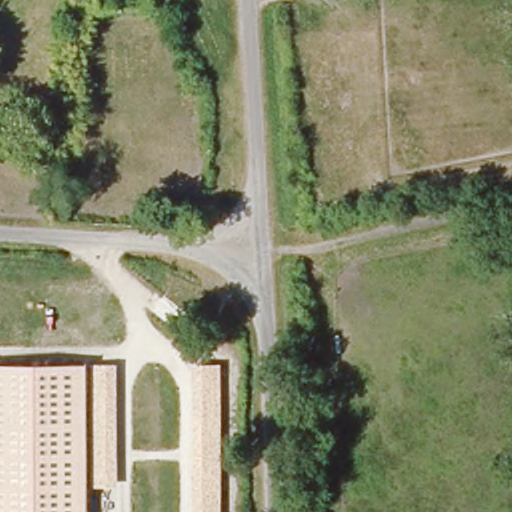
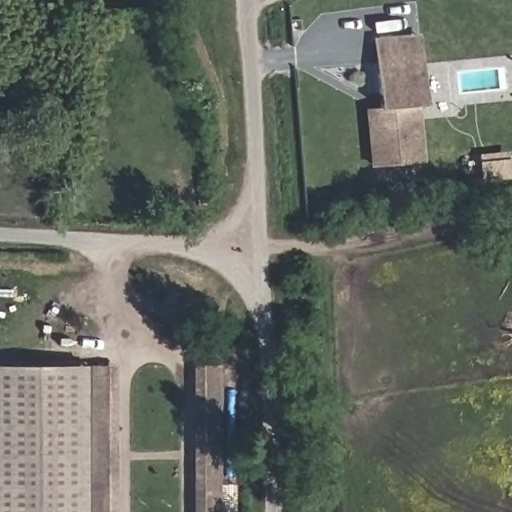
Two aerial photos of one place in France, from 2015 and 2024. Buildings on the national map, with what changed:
new [(427,104),(419,104),(423,161),(370,166),(365,108),(381,107),(372,37),(421,32),(427,104)]
demolished [(197,83),(194,68),(207,66),(210,82),(197,83)]
unchanged [(193,512),(195,363),(224,364),(222,512),(193,512)]
unchanged [(0,512),(0,364),(122,364),(122,512),(0,512)]

